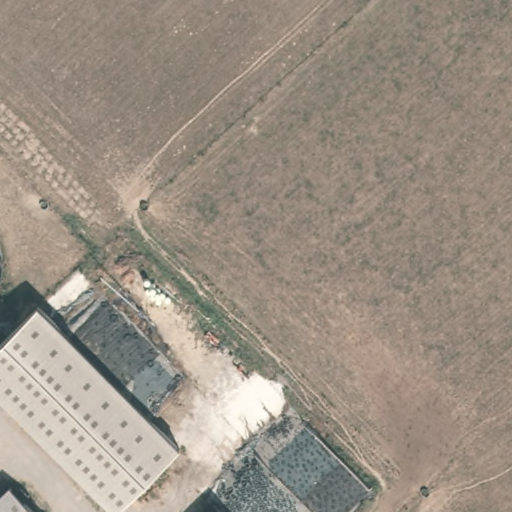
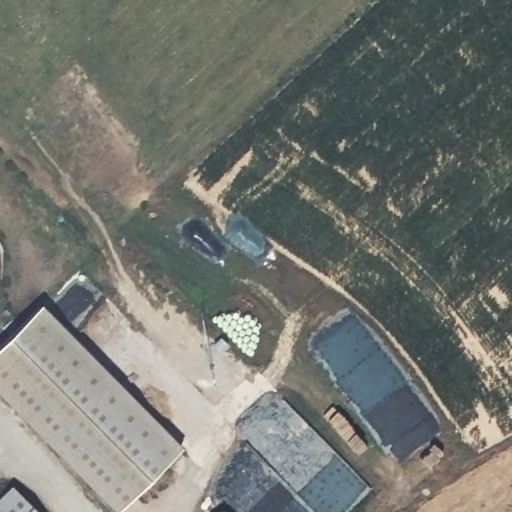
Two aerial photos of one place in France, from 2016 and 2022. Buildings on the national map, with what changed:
unchanged [(122,508),(0,400),(0,345),(32,309),(181,443),(122,508)]
unchanged [(0,496),(9,486),(37,512),(2,512),(0,510),(0,496)]
unchanged [(220,512),(214,512),(217,509),(220,512)]
unchanged [(0,510),(2,512),(0,512),(0,510)]

